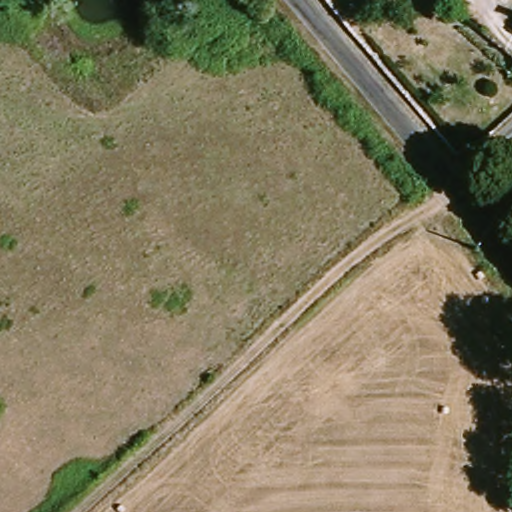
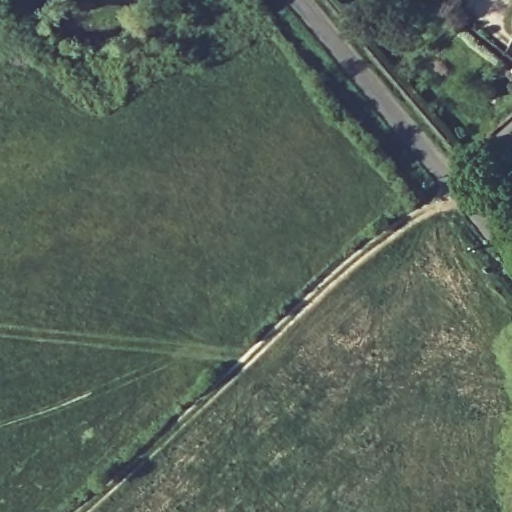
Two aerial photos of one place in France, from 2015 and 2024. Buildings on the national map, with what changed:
[]

